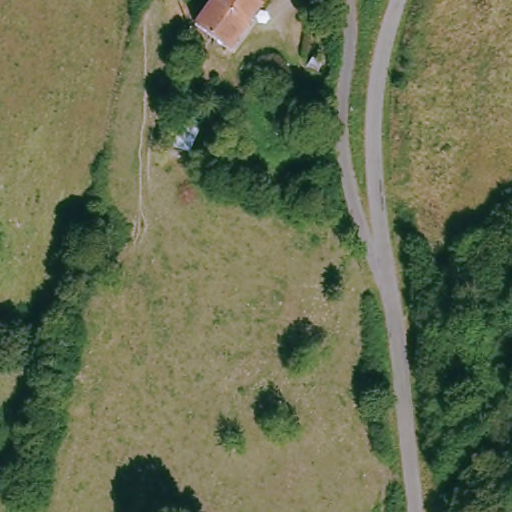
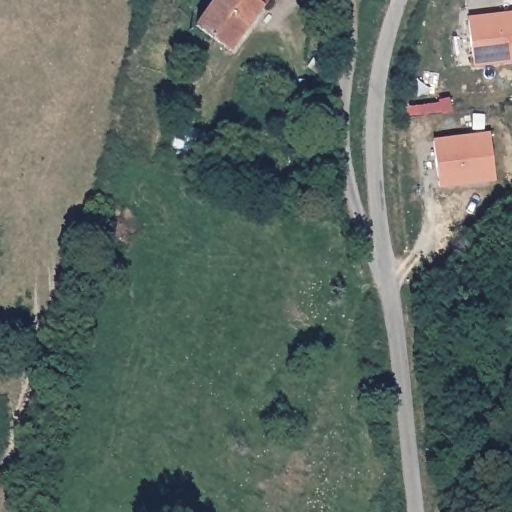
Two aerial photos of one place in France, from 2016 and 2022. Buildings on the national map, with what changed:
unchanged [(230,48),(192,21),(208,0),(265,0),(230,48)]
new [(512,12),(512,61),(475,65),(470,17),(512,12)]
unchanged [(201,130),(191,155),(171,147),(180,122),(201,130)]
new [(491,132),(497,180),(442,186),(436,140),(491,132)]

